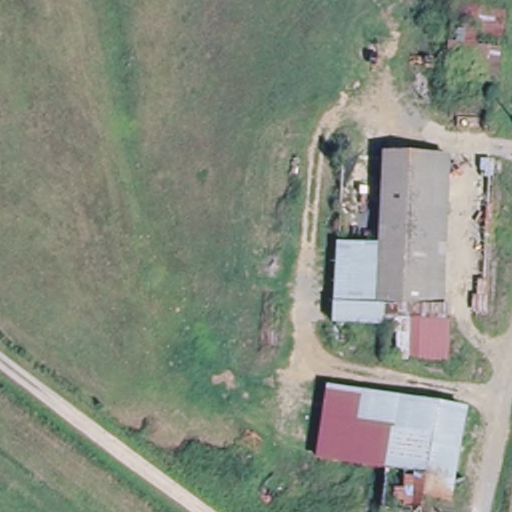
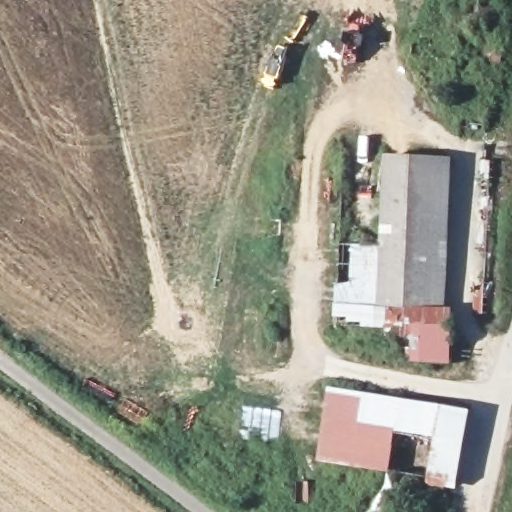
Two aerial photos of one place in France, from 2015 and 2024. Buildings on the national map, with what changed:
unchanged [(340,326),(341,242),(383,245),(388,155),(452,159),(447,310),(388,305),(387,326),(340,326)]
unchanged [(388,305),(447,310),(454,310),(452,361),(387,357),(387,326),(388,305)]
unchanged [(357,422),(393,431),(386,473),(315,460),(328,382),(363,388),(357,422)]
unchanged [(471,405),(465,435),(395,421),(393,431),(357,422),(363,388),(471,405)]
unchanged [(456,483),(386,473),(393,431),(395,421),(465,435),(456,483)]

